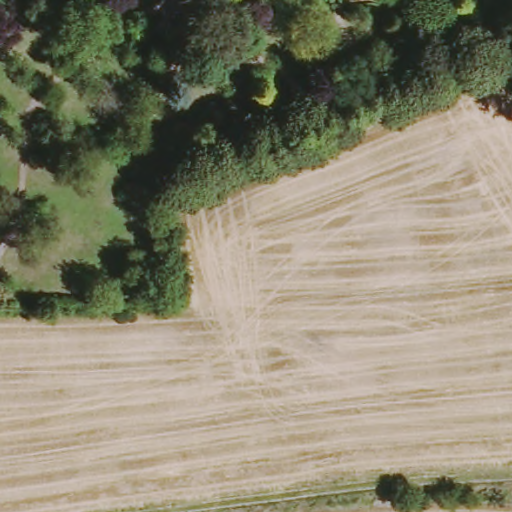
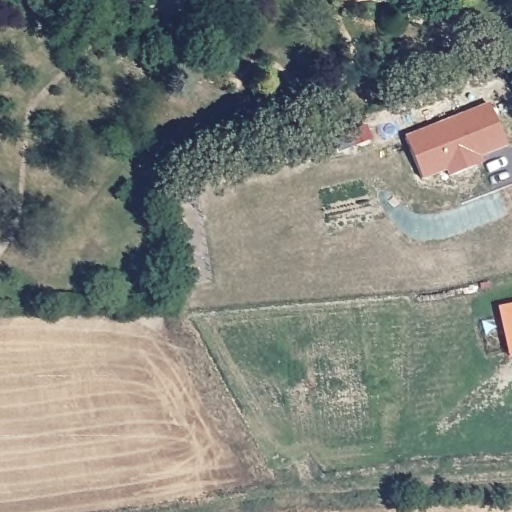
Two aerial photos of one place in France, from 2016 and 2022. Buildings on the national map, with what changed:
new [(489,103),(506,146),(480,157),(482,164),(449,177),(445,170),(422,179),(405,136),(489,103)]
new [(497,307),(512,305),(512,357),(507,358),(497,307)]

